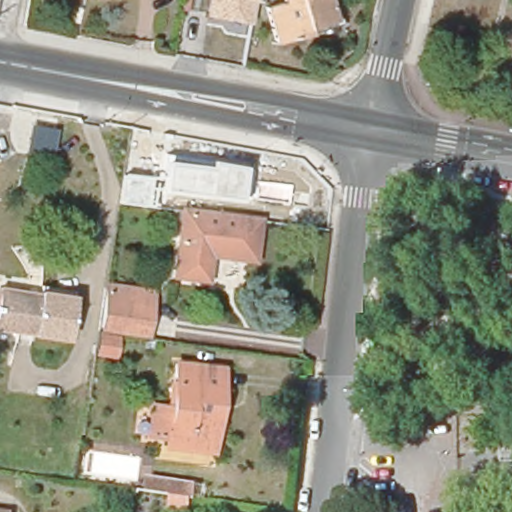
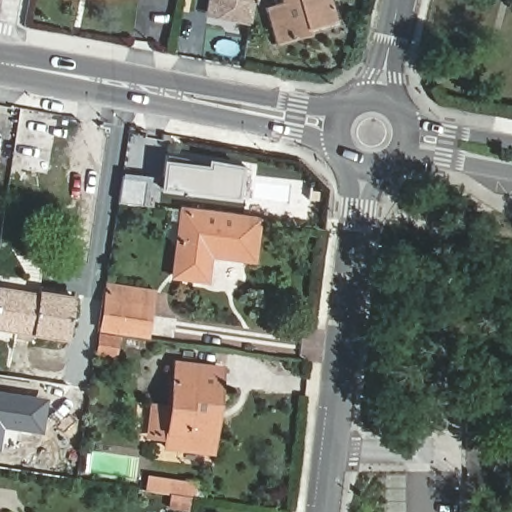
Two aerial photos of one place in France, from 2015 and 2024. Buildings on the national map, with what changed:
unchanged [(206,16),(209,0),(254,0),(249,24),(206,16)]
unchanged [(283,7),(281,0),(328,0),(335,26),(307,34),(308,39),(277,48),(267,12),(283,7)]
unchanged [(246,199),(238,198),(160,189),(164,161),(207,165),(208,160),(243,165),(250,169),(246,199)]
unchanged [(149,187),(153,188),(151,206),(118,202),(122,173),(150,177),(149,187)]
unchanged [(183,211),(259,220),(254,261),(211,256),(207,281),(174,276),(183,211)]
unchanged [(101,331),(106,299),(108,286),(154,292),(152,306),(147,337),(101,331)]
unchanged [(66,339),(33,334),(0,328),(0,288),(40,295),(40,292),(73,297),(66,339)]
unchanged [(116,359),(97,357),(100,335),(118,338),(116,359)]
unchanged [(173,438),(155,436),(158,407),(176,408),(181,363),(227,369),(222,411),(218,411),(214,452),(172,447),(173,438)]
new [(3,428),(0,448),(0,391),(47,399),(42,434),(3,428)]
new [(187,494),(166,490),(144,487),(146,476),(168,479),(189,482),(187,494)]

